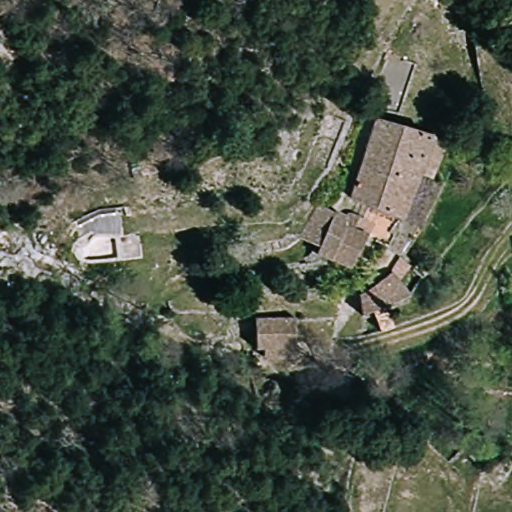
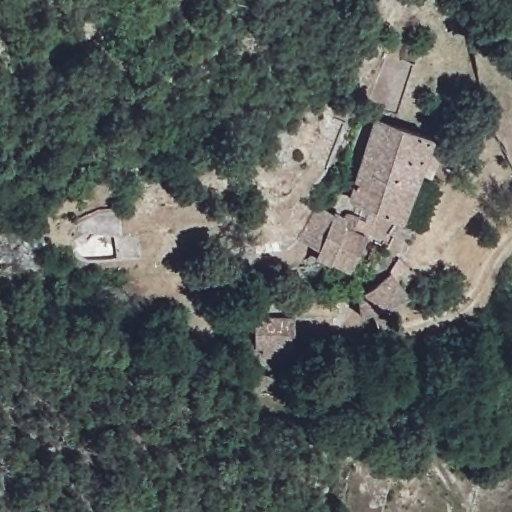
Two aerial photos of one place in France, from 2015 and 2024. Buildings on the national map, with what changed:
unchanged [(398,214),(350,197),(377,123),(443,143),(433,175),(416,170),(398,214)]
unchanged [(313,258),(318,248),(298,241),(317,206),(349,217),(345,226),(369,235),(350,272),(313,258)]
unchanged [(410,298),(364,319),(357,295),(392,273),(410,298)]
unchanged [(297,319),(296,368),(265,362),(266,354),(255,354),(257,318),(297,319)]

